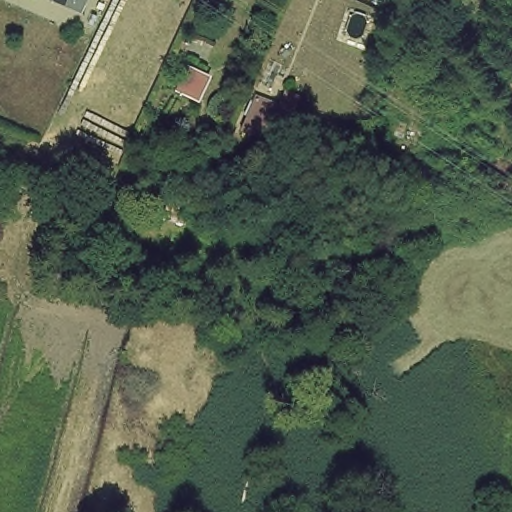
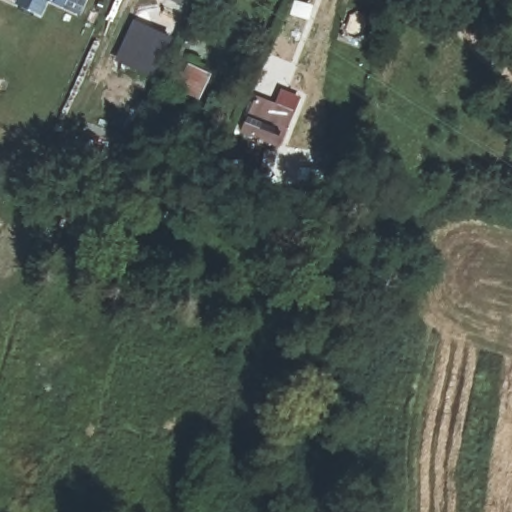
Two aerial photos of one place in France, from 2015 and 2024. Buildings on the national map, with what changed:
demolished [(51,0),(72,0),(67,10),(51,0)]
new [(52,0),(87,0),(80,13),(52,0)]
new [(133,20),(172,38),(152,79),(115,61),(133,20)]
unchanged [(217,78),(203,106),(184,96),(201,69),(217,78)]
new [(294,113),(280,149),(239,134),(256,98),(278,106),(285,92),(299,98),(294,113)]

